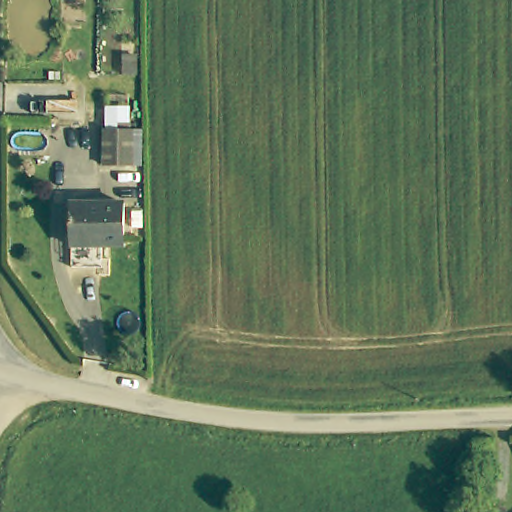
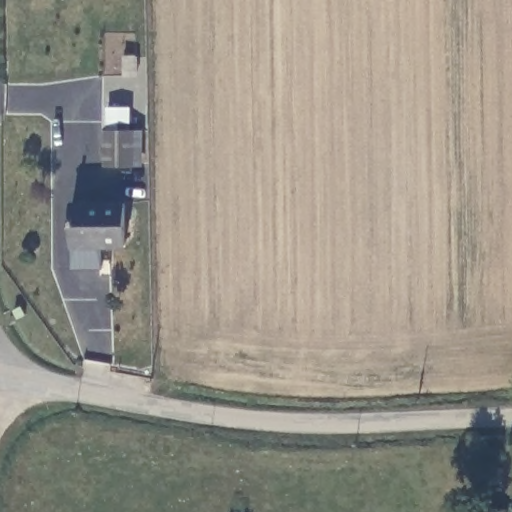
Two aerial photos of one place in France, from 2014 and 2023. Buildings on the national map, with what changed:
unchanged [(102,130),(130,130),(141,130),(141,165),(129,165),(101,165),(102,130)]
unchanged [(70,203),(124,204),(124,245),(101,245),(101,267),(70,267),(70,245),(70,203)]

